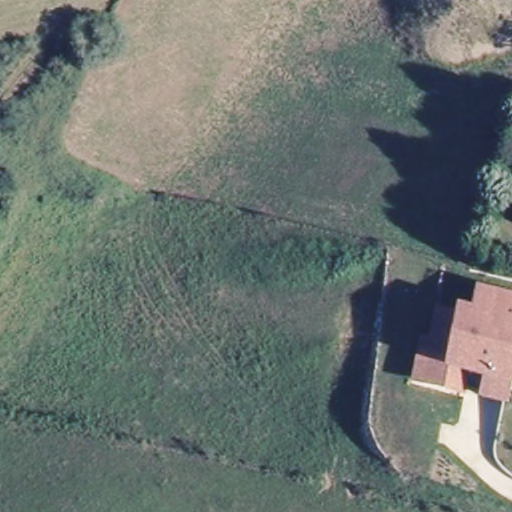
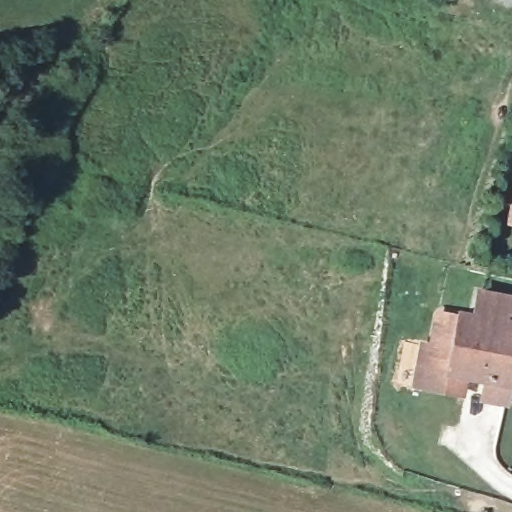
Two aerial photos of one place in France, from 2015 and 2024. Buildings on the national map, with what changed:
unchanged [(468,366),(464,385),(448,382),(419,376),(426,340),(434,341),(441,307),(461,311),(461,307),(476,311),(481,287),(512,293),(512,375),(508,394),(487,390),(490,371),(468,366)]

